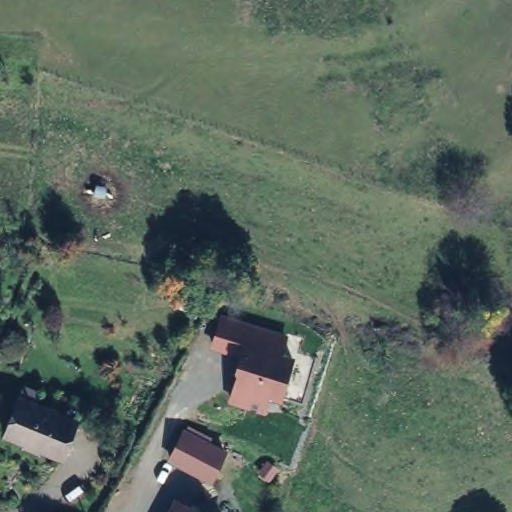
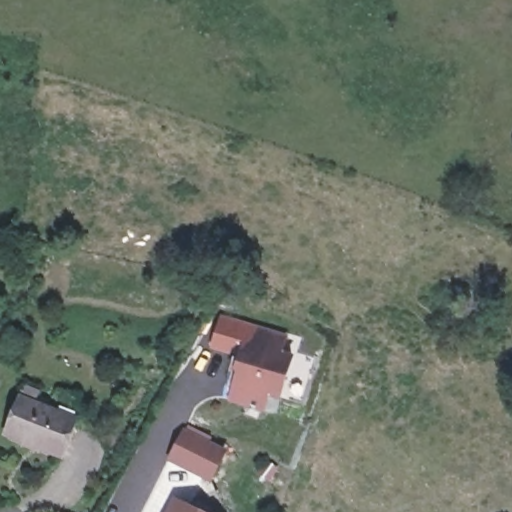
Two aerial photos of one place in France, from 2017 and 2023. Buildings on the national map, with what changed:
unchanged [(279,353),(293,357),(281,395),(269,393),(264,405),(231,397),(243,352),(214,345),(223,319),(286,337),(279,353)]
unchanged [(54,457),(3,437),(18,397),(69,418),(54,457)]
unchanged [(213,483),(168,460),(181,429),(224,450),(213,483)]
unchanged [(203,512),(166,512),(174,497),(203,512)]

